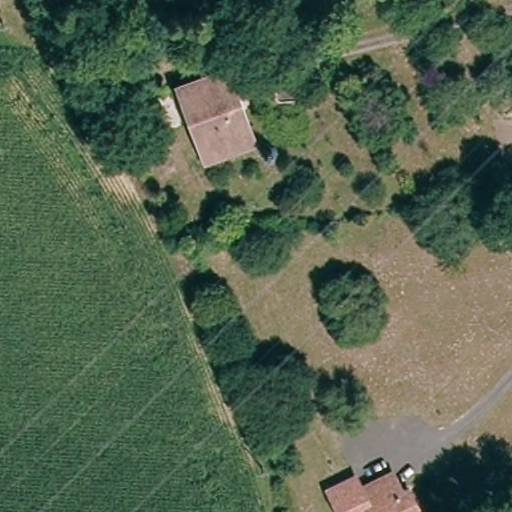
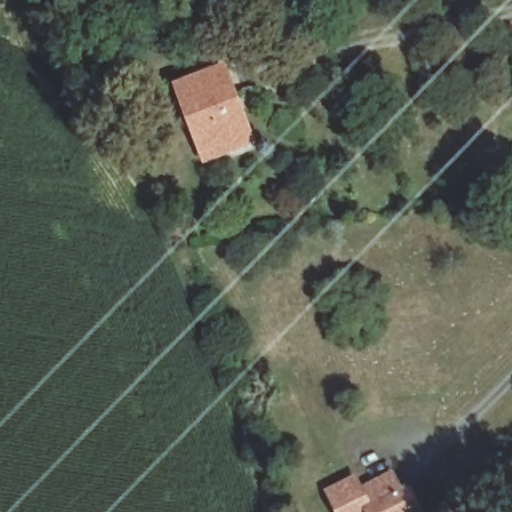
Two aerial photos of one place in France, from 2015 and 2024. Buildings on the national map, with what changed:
unchanged [(229,154),(201,162),(173,84),(223,67),(247,137),(251,147),(229,154)]
unchanged [(407,497),(412,495),(420,512),(335,512),(328,497),(363,482),(369,495),(400,481),(407,497)]

